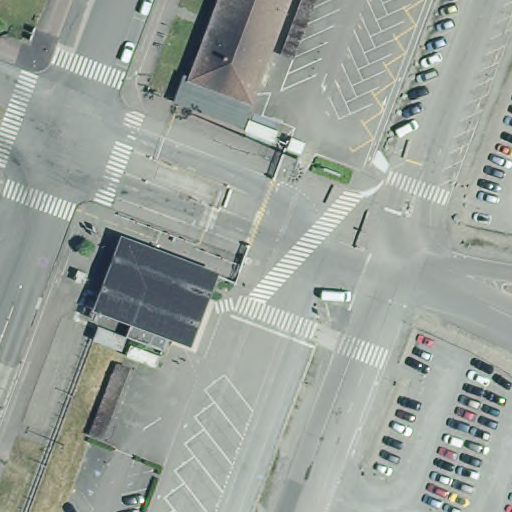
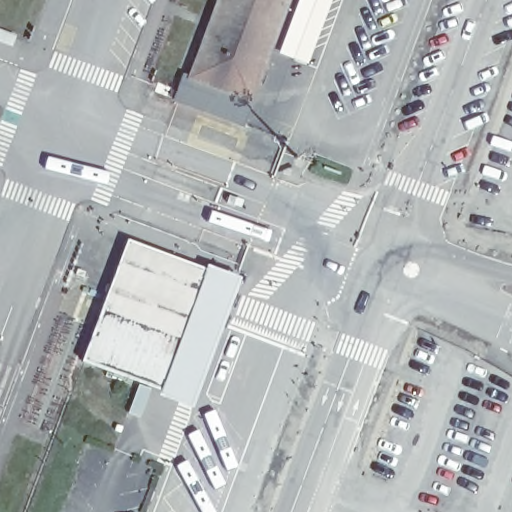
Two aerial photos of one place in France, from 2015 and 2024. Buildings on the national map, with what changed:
unchanged [(189,79),(219,0),(287,0),(258,76),(264,79),(262,86),(255,83),(248,102),(239,125),(231,121),(175,100),(183,77),(189,79)]
unchanged [(279,58),(300,0),(318,0),(294,64),(279,58)]
demolished [(181,283),(163,328),(96,303),(121,238),(203,268),(195,288),(181,283)]
new [(206,269),(208,266),(240,278),(193,407),(159,395),(161,391),(83,362),(128,240),(206,269)]

